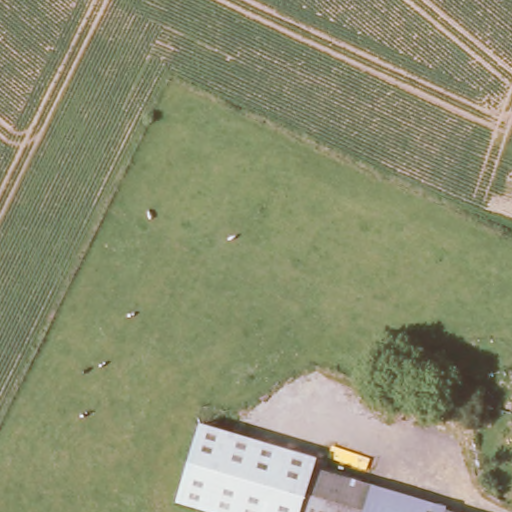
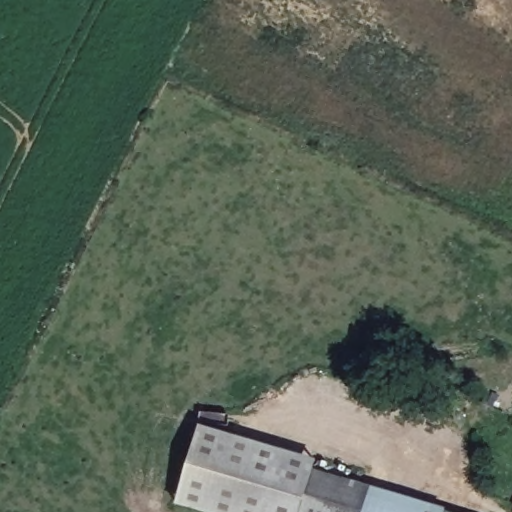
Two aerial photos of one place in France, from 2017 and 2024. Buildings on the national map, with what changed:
unchanged [(315,465),(301,512),(206,512),(175,503),(200,423),(317,458),(315,465)]
unchanged [(350,475),(348,480),(447,508),(445,511),(447,512),(301,512),(315,465),(350,475)]

